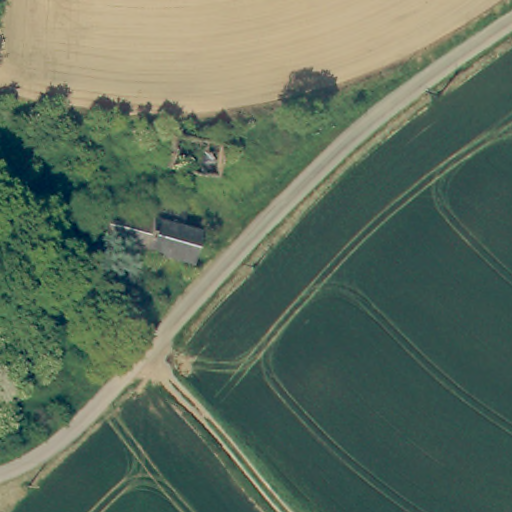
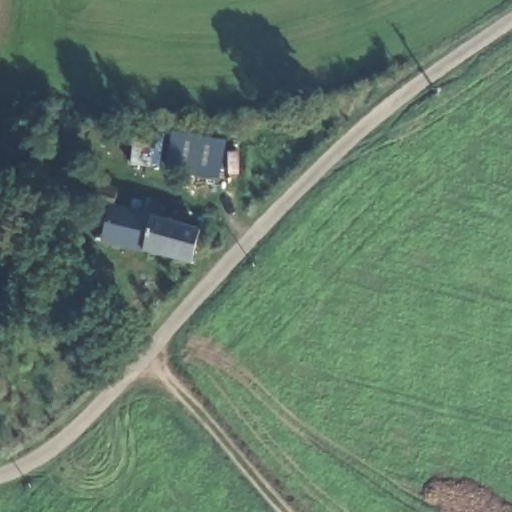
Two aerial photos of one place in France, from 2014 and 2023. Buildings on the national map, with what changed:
demolished [(223,142),(219,177),(200,176),(167,167),(176,130),(223,142)]
unchanged [(112,188),(108,208),(146,218),(151,199),(181,207),(176,226),(195,230),(186,265),(96,241),(103,211),(83,205),(94,183),(112,188)]

